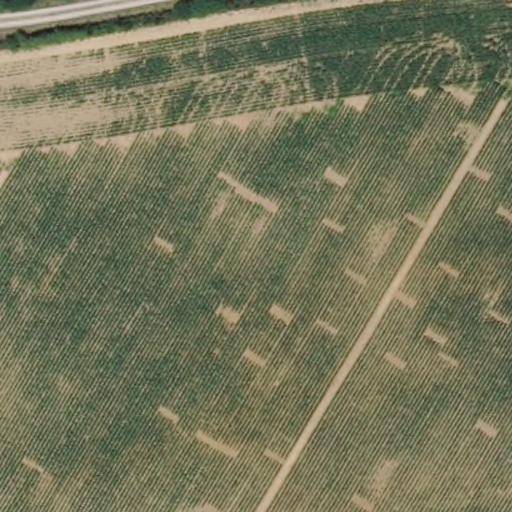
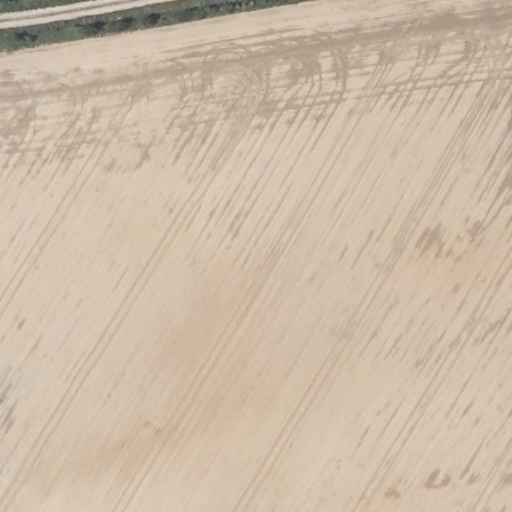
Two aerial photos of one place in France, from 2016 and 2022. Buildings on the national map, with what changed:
[]

